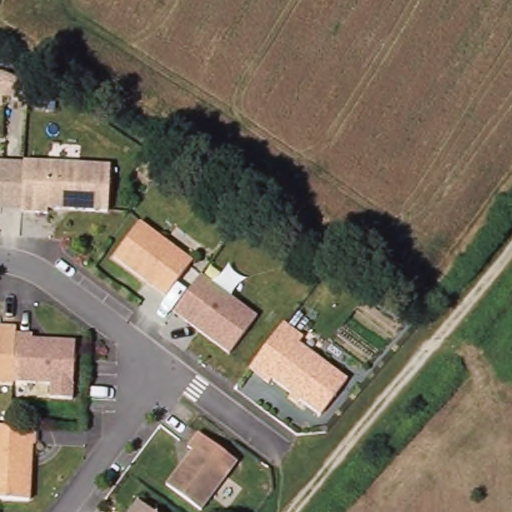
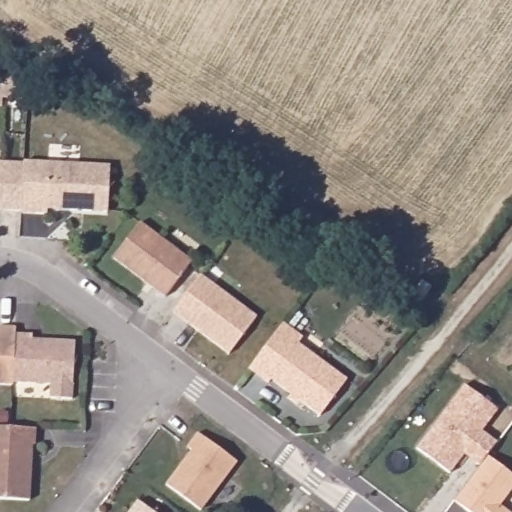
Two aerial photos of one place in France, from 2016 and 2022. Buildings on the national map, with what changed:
unchanged [(29,84),(29,85),(27,99),(2,98),(4,73),(29,84)]
unchanged [(48,209),(47,214),(22,213),(22,211),(24,171),(25,164),(25,161),(110,166),(109,212),(71,210),(60,210),(48,209)]
unchanged [(3,162),(25,164),(24,171),(22,211),(0,210),(0,209),(0,162),(3,162)]
unchanged [(109,258),(135,223),(187,262),(161,297),(147,287),(140,281),(109,258)]
unchanged [(196,275),(252,317),(225,354),(169,312),(196,275)]
unchanged [(271,340),(284,323),(303,337),(299,343),(315,355),(347,380),(321,416),(300,400),(291,394),(272,379),(269,383),(250,369),(271,340)]
unchanged [(11,328),(10,335),(8,383),(8,385),(0,385),(0,327),(11,328)]
unchanged [(28,336),(27,340),(70,342),(67,399),(45,398),(46,384),(8,383),(10,335),(28,336)]
new [(418,447),(465,385),(497,408),(482,432),(496,442),(487,456),(480,466),(463,454),(451,472),(418,447)]
unchanged [(6,427),(31,429),(30,445),(28,445),(25,500),(0,499),(0,427),(6,427)]
unchanged [(187,451),(183,447),(194,433),(232,463),(222,476),(206,497),(196,511),(162,485),(187,451)]
new [(480,466),(487,456),(512,474),(512,489),(501,506),(510,512),(472,512),(455,499),(480,466)]
unchanged [(149,512),(125,512),(134,501),(149,512)]

